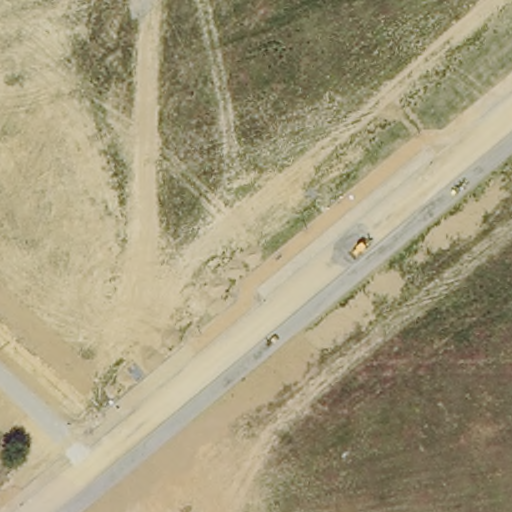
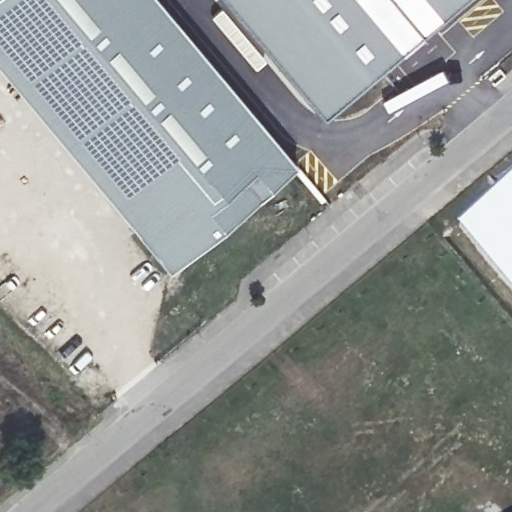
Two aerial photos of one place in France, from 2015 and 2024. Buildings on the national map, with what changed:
new [(289,172),(160,276),(0,83),(0,0),(141,0),(289,172)]
new [(391,54),(320,117),(274,65),(267,59),(249,40),(220,5),(224,2),(222,0),(453,0),(391,54)]
new [(220,5),(249,40),(267,59),(255,69),(206,17),(220,5)]
new [(465,229),(512,188),(512,286),(465,229)]

